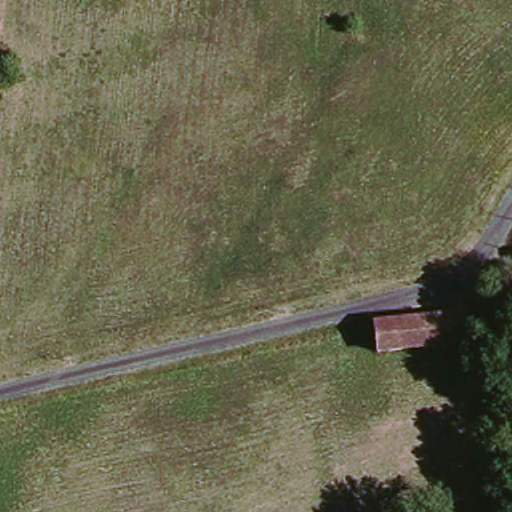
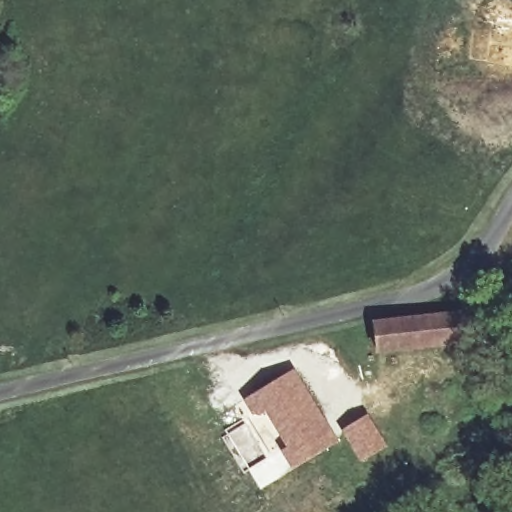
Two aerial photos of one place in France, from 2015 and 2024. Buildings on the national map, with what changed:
unchanged [(459,308),(464,335),(379,352),(375,325),(459,308)]
new [(295,367),(339,442),(292,471),(280,446),(263,415),(252,421),(241,399),(295,367)]
new [(367,413),(387,447),(359,463),(340,430),(367,413)]
new [(280,446),(292,471),(260,490),(247,468),(280,446)]

